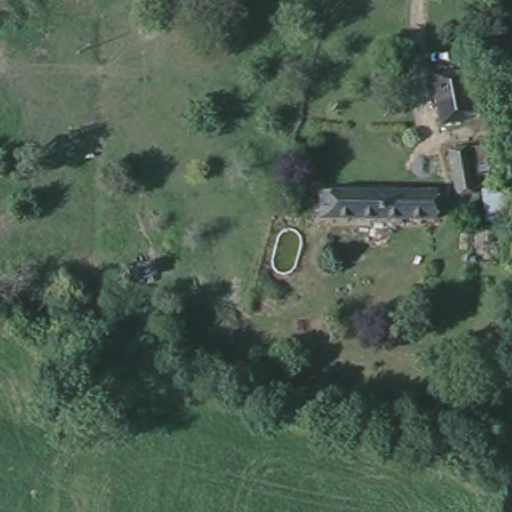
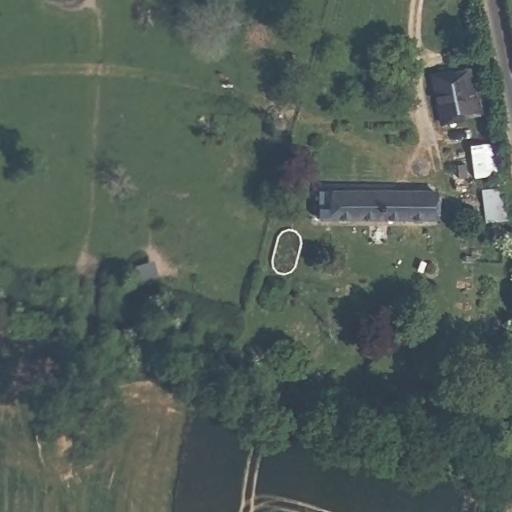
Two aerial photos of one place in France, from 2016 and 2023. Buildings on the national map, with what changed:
unchanged [(474,65),(484,111),(457,118),(447,71),(474,65)]
unchanged [(457,118),(433,124),(423,77),(447,71),(457,118)]
unchanged [(454,198),(448,149),(476,145),(482,194),(454,198)]
unchanged [(510,185),(512,215),(492,217),(488,186),(510,185)]
unchanged [(441,188),(439,215),(325,216),(325,187),(441,188)]
unchanged [(139,324),(190,341),(183,360),(133,345),(139,324)]

